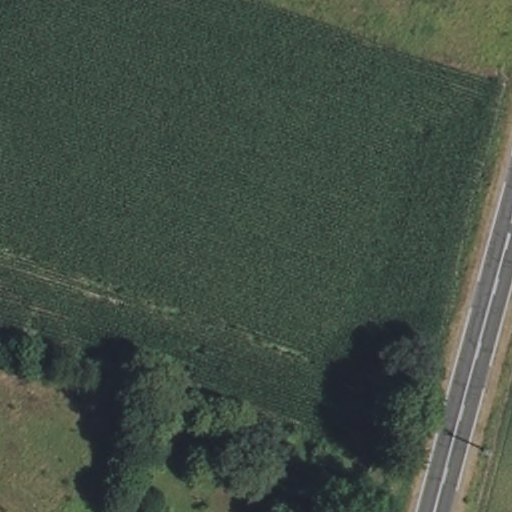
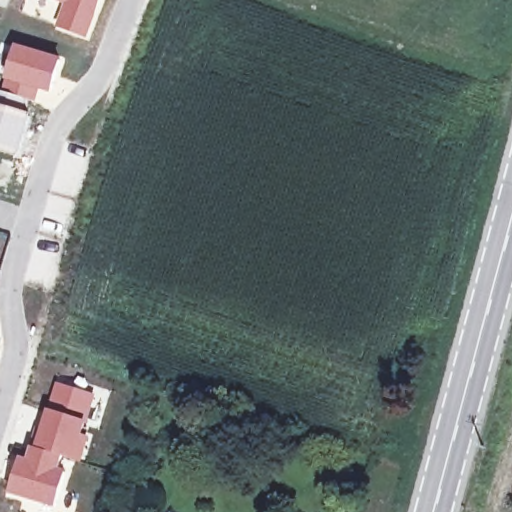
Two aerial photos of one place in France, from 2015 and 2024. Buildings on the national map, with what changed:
new [(88,39),(55,27),(63,5),(51,0),(102,0),(88,39)]
new [(17,44),(62,57),(52,94),(41,90),(35,104),(27,101),(2,91),(17,44)]
new [(2,91),(27,101),(26,105),(28,105),(27,109),(33,111),(20,156),(0,151),(0,91),(2,91)]
new [(56,381),(95,393),(83,435),(88,436),(80,462),(65,458),(35,447),(56,381)]
new [(22,457),(27,458),(32,446),(35,447),(65,458),(62,468),(67,470),(56,507),(12,493),(22,457)]

